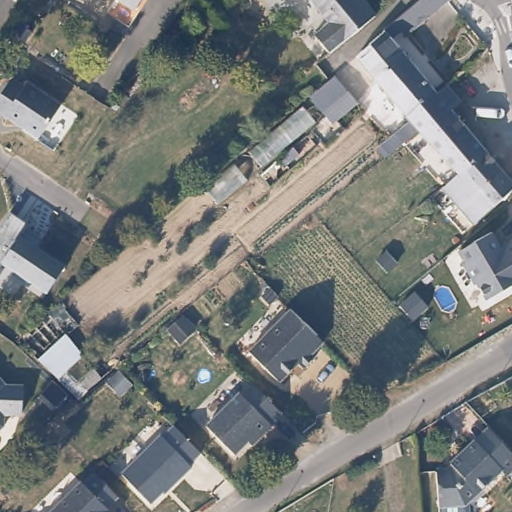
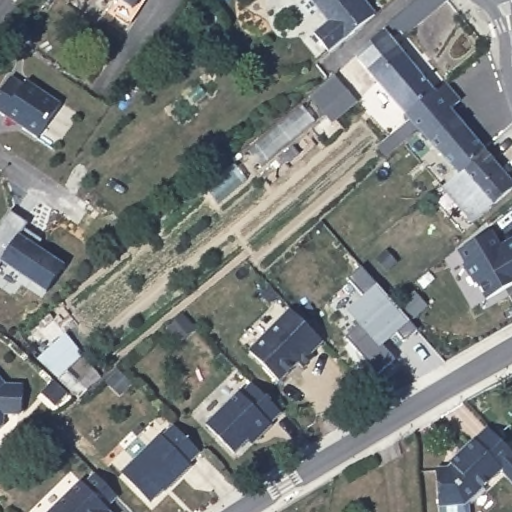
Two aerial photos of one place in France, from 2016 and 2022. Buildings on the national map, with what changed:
unchanged [(133,9),(119,0),(140,0),(133,9)]
unchanged [(361,4),(364,2),(380,21),(334,59),(319,40),(332,28),(309,0),(357,0),(361,4)]
unchanged [(412,119),(383,88),(358,58),(427,0),(451,0),(454,4),(427,26),(425,24),(406,40),(402,35),(393,42),(438,97),(412,119)]
unchanged [(358,96),(333,118),(313,92),(338,71),(358,96)]
unchanged [(61,105),(40,139),(0,109),(0,90),(9,75),(61,105)]
unchanged [(438,97),(487,155),(461,177),(448,162),(426,135),(424,132),(412,119),(438,97)]
unchanged [(487,155),(512,185),(512,195),(486,216),(474,226),(468,219),(444,191),(461,177),(487,155)]
unchanged [(45,239),(40,251),(67,269),(49,300),(1,270),(0,273),(0,226),(8,213),(45,239)]
unchanged [(459,252),(493,235),(499,246),(512,239),(512,285),(485,300),(459,252)]
new [(384,345),(396,360),(378,374),(345,337),(360,325),(347,311),(364,296),(348,277),(361,266),(378,284),(411,321),(418,330),(406,341),(398,333),(384,345)]
unchanged [(321,342),(308,355),(311,358),(300,369),(295,364),(275,383),(246,353),(288,310),(321,342)]
unchanged [(71,331),(97,369),(74,391),(44,355),(71,331)]
unchanged [(465,406),(512,376),(512,383),(469,411),(465,406)]
unchanged [(6,384),(23,384),(24,421),(7,423),(0,433),(0,378),(6,384)]
unchanged [(248,440),(235,453),(207,424),(241,392),(242,393),(253,382),(282,412),(271,423),(273,425),(260,437),(253,444),(248,440)]
unchanged [(494,464),(458,500),(432,499),(430,463),(442,465),(445,462),(443,459),(466,435),(479,422),(486,429),(512,455),(512,457),(499,470),(494,464)]
unchanged [(164,433),(166,435),(177,424),(203,451),(192,462),(194,465),(172,486),(171,484),(153,501),(125,471),(164,433)]
unchanged [(83,486),(94,475),(117,497),(106,509),(109,512),(51,512),(80,483),(83,486)]

